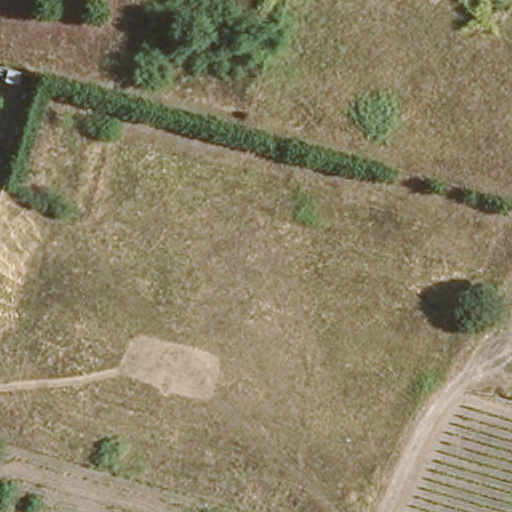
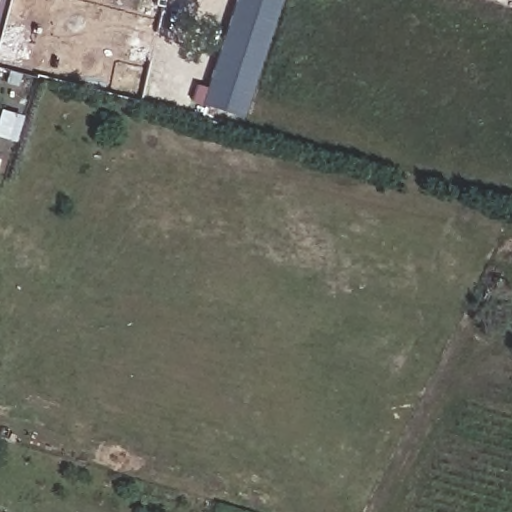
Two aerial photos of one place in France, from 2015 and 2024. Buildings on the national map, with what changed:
new [(239,115),(199,102),(232,0),(276,0),(239,115)]

